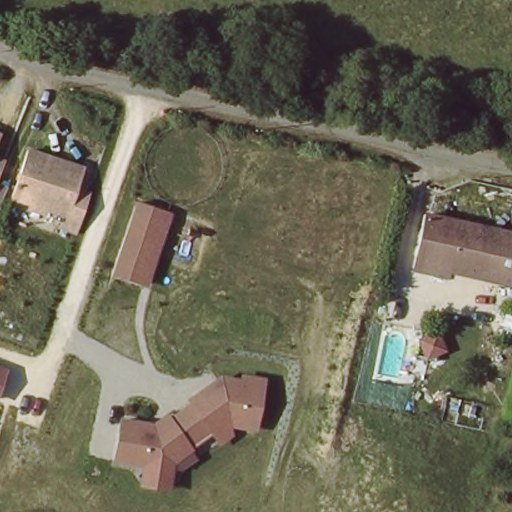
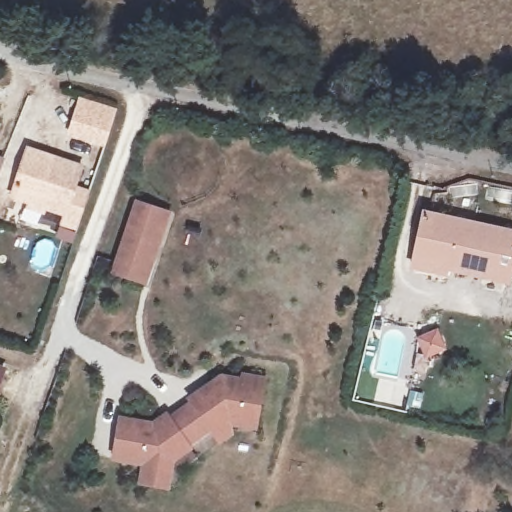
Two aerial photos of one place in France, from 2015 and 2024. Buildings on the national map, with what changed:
new [(78,96),(118,108),(104,148),(66,136),(78,96)]
unchanged [(63,184),(84,191),(73,222),(58,217),(60,212),(6,194),(22,147),(70,163),(63,184)]
unchanged [(151,284),(109,277),(131,199),(172,212),(151,284)]
unchanged [(411,268),(415,254),(426,212),(512,234),(512,274),(509,287),(447,272),(445,277),(411,268)]
unchanged [(0,365),(8,367),(0,400),(0,365)]
unchanged [(258,432),(239,429),(218,444),(210,435),(173,465),(170,490),(132,486),(138,467),(108,462),(118,416),(151,423),(182,401),(221,373),(236,374),(239,369),(266,376),(258,432)]

